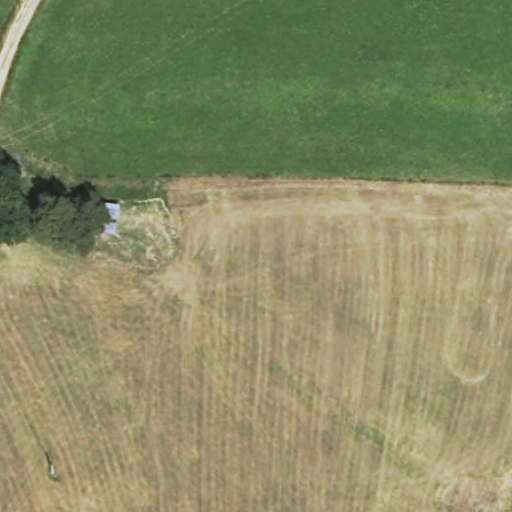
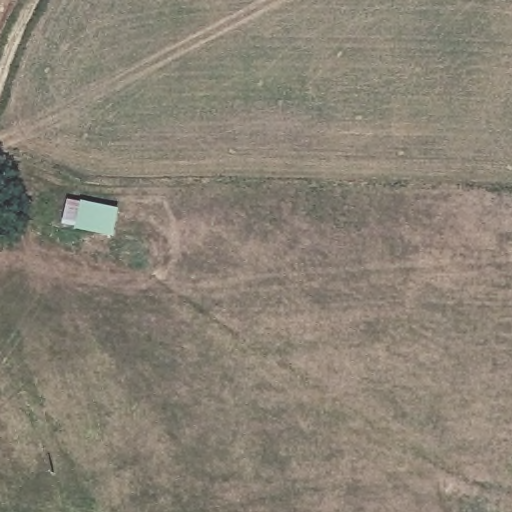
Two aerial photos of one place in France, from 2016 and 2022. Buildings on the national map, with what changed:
unchanged [(90,231),(65,222),(67,201),(95,205),(90,231)]

